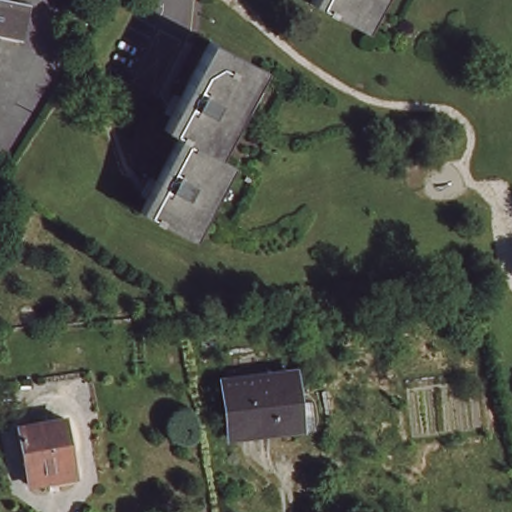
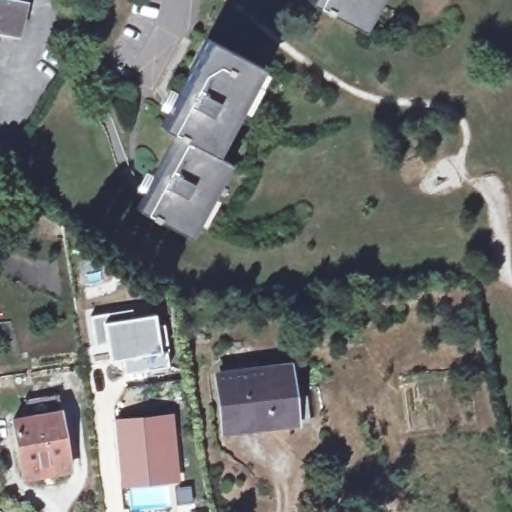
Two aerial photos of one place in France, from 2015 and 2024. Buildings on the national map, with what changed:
unchanged [(305,6),(308,0),(368,0),(352,29),(305,6)]
unchanged [(17,39),(0,35),(0,1),(25,7),(17,39)]
unchanged [(99,96),(81,86),(102,42),(121,51),(99,96)]
unchanged [(212,159),(227,167),(189,239),(142,217),(180,143),(168,136),(212,49),(256,71),(212,159)]
new [(132,305),(133,314),(156,311),(158,323),(166,321),(171,368),(123,376),(120,359),(110,361),(106,354),(104,351),(96,351),(89,314),(132,305)]
unchanged [(217,402),(215,380),(284,371),(289,402),(303,399),(307,423),(292,425),(229,432),(221,432),(217,402)]
unchanged [(71,469),(24,476),(15,421),(60,412),(71,469)]
new [(172,412),(179,481),(120,487),(114,419),(172,412)]

